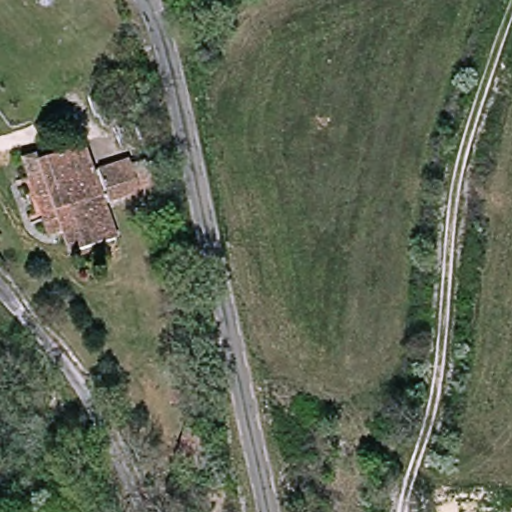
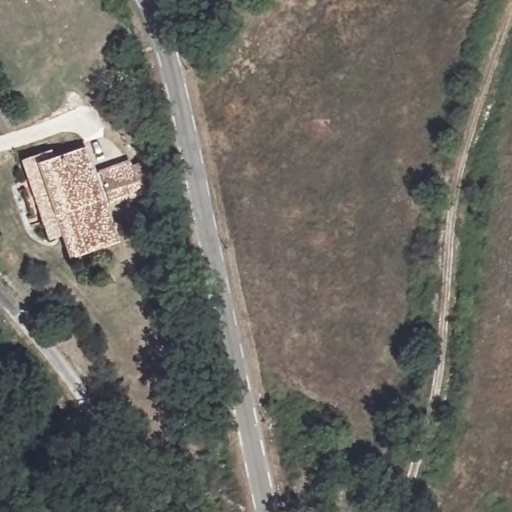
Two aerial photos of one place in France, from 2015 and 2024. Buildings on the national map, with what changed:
unchanged [(62,242),(48,246),(20,169),(48,161),(53,166),(83,156),(92,179),(128,168),(140,199),(102,211),(114,247),(70,262),(62,242)]
unchanged [(180,443),(202,454),(191,481),(168,469),(180,443)]

